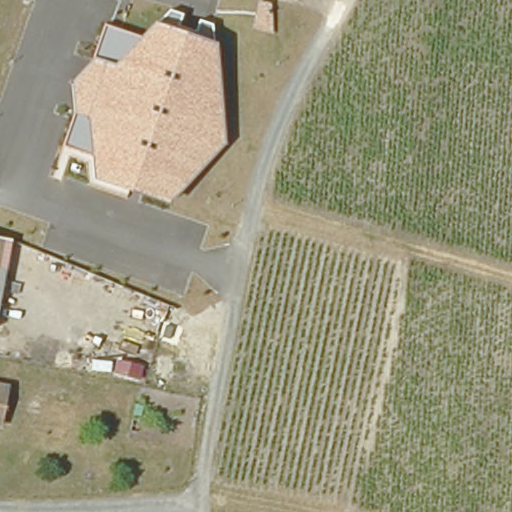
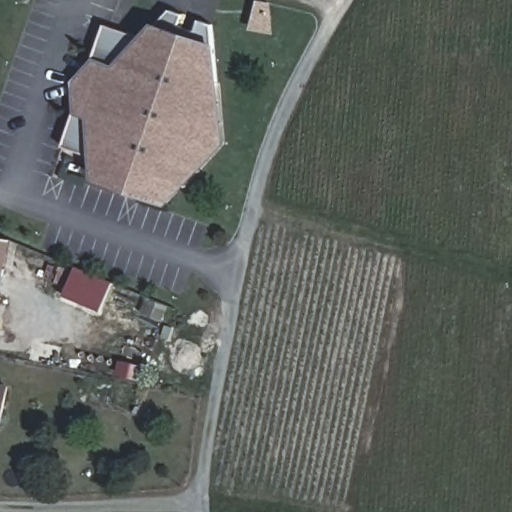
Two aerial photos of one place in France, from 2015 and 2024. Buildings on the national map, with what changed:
unchanged [(226,144),(169,204),(95,180),(92,158),(64,148),(76,115),(74,82),(95,60),(105,26),(144,38),(155,25),(171,10),(184,15),(181,27),(196,32),(200,21),(213,24),(218,45),(226,144)]
unchanged [(10,249),(0,301),(0,237),(12,240),(10,249)]
new [(64,297),(76,267),(113,282),(101,312),(64,297)]
unchanged [(4,423),(0,422),(0,383),(11,385),(4,423)]

